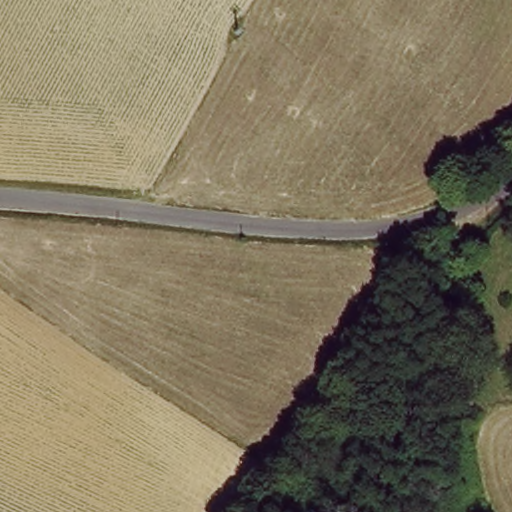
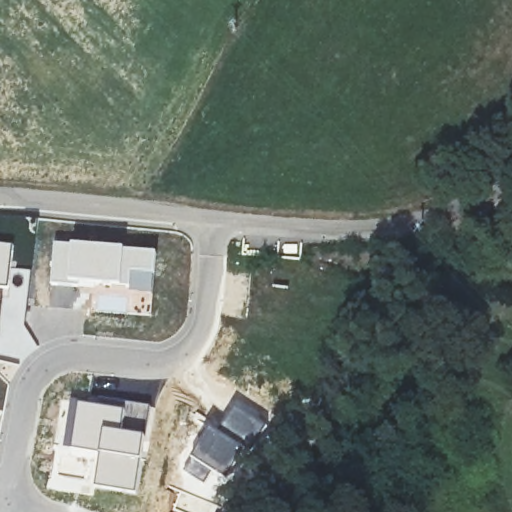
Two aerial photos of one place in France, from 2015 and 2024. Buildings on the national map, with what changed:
new [(54,244),(159,254),(154,297),(99,290),(76,290),(74,310),(49,308),(54,244)]
new [(13,247),(0,338),(0,245),(13,247)]
new [(98,295),(129,297),(127,315),(96,312),(98,295)]
new [(72,411),(69,410),(70,402),(124,409),(125,402),(151,406),(146,437),(136,496),(90,489),(97,456),(67,450),(72,429),(68,428),(72,411)]
new [(234,407),(270,430),(253,454),(223,432),(221,434),(218,432),(234,407)]
new [(186,456),(205,424),(247,451),(227,482),(213,474),(205,485),(183,471),(186,456)]

